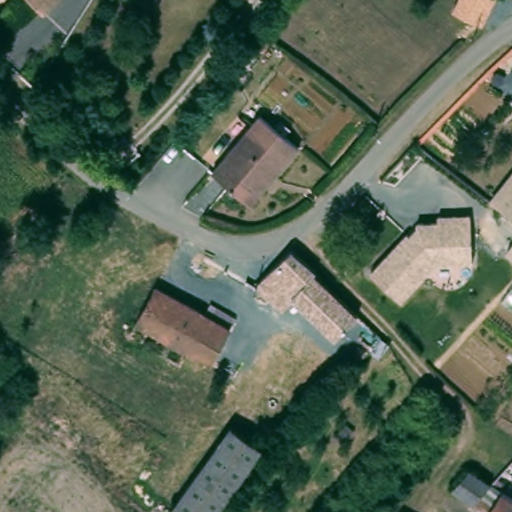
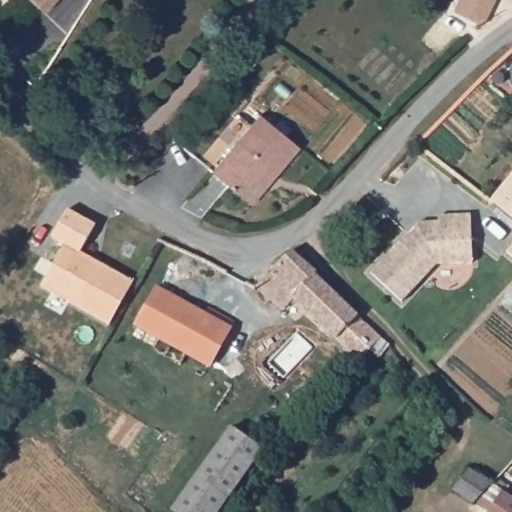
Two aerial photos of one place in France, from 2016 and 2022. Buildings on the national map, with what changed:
unchanged [(44,10),(33,0),(53,0),(44,10)]
new [(455,0),(493,0),(481,21),(453,4),(455,0)]
unchanged [(246,199),(212,173),(260,114),(301,147),(277,176),(253,205),(246,199)]
unchanged [(512,171),(512,220),(488,200),(512,171)]
new [(96,224),(81,251),(133,281),(109,325),(40,286),(64,245),(51,237),(67,208),(96,224)]
unchanged [(426,212),(460,208),(465,257),(428,262),(396,301),(362,274),(397,232),(396,231),(406,220),(427,218),(426,212)]
unchanged [(321,267),(318,271),(353,302),(386,333),(365,356),(299,293),(289,306),(261,282),(296,246),(321,267)]
unchanged [(161,285),(235,324),(206,374),(132,334),(161,285)]
unchanged [(267,445),(220,512),(189,512),(179,505),(237,424),(267,445)]
unchanged [(453,491),(472,471),(492,484),(501,490),(512,498),(512,512),(487,512),(474,504),(453,491)]

